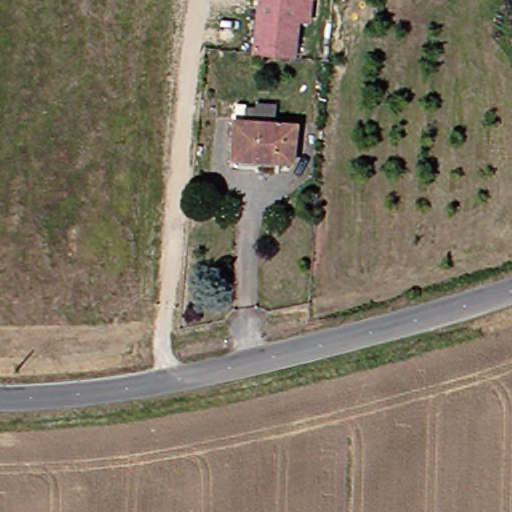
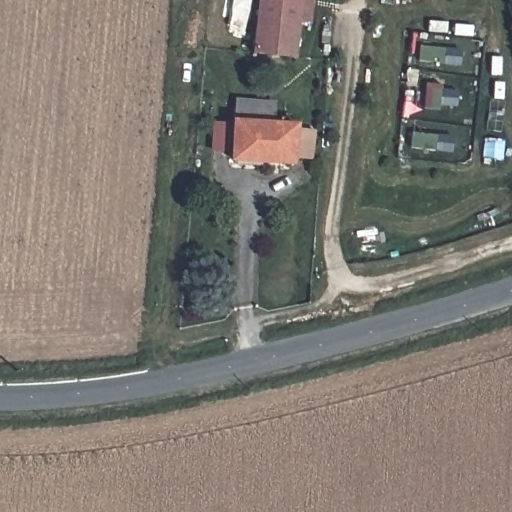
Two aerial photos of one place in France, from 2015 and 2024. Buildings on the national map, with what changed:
unchanged [(288,55),(248,50),(253,0),(294,0),(288,55)]
unchanged [(232,169),(233,159),(226,159),(228,120),(291,124),(289,162),(254,160),(253,170),(232,169)]

